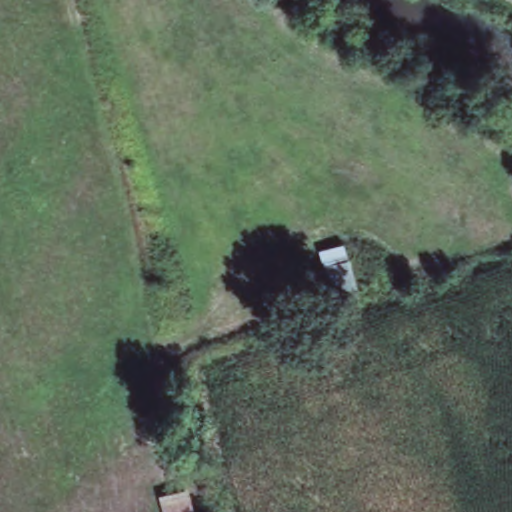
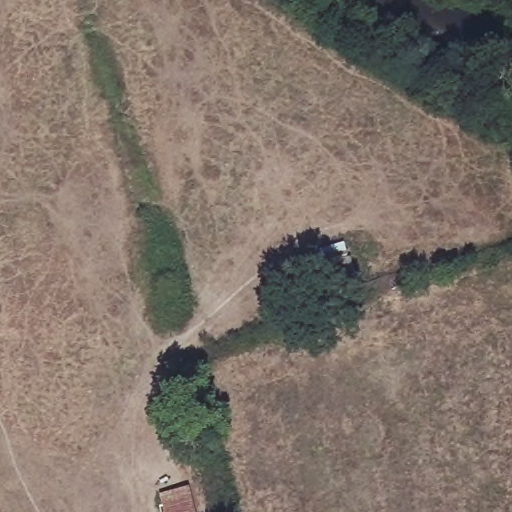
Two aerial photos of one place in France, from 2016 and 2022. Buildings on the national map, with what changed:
unchanged [(344,244),(355,294),(325,301),(319,276),(314,251),(344,244)]
unchanged [(189,508),(190,512),(157,512),(152,496),(182,487),(189,508)]

